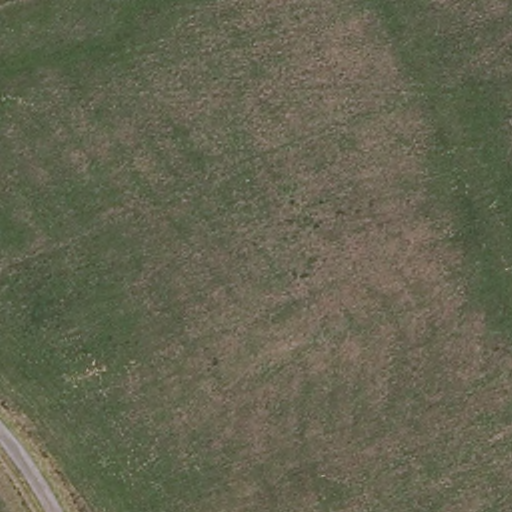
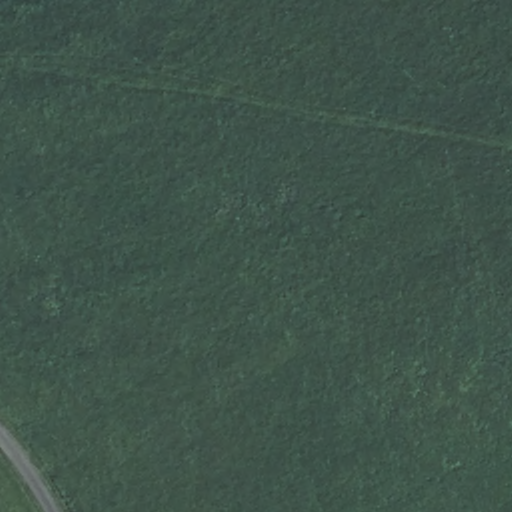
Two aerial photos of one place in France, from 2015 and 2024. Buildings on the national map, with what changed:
[]

